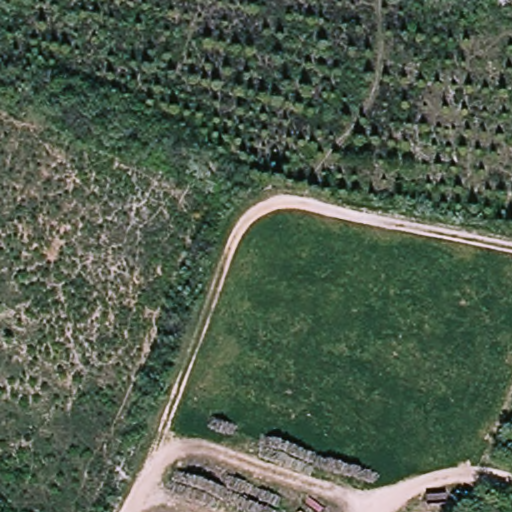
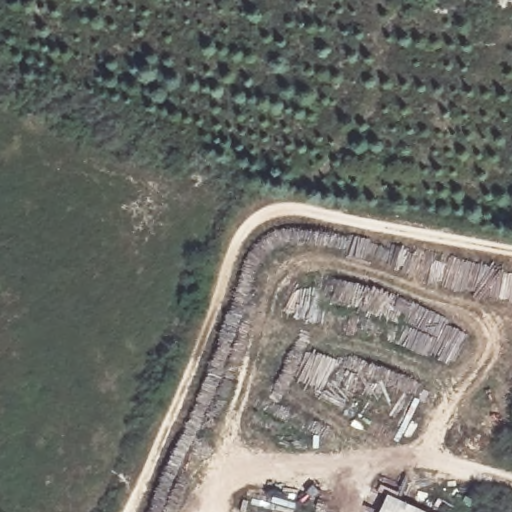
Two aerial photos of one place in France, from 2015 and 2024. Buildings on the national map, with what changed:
new [(427,512),(378,512),(387,494),(427,512)]

